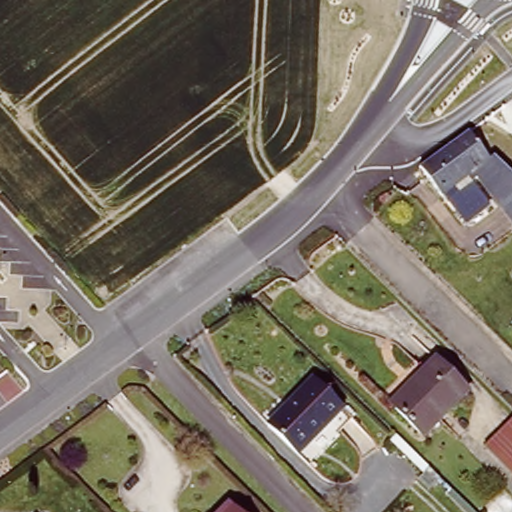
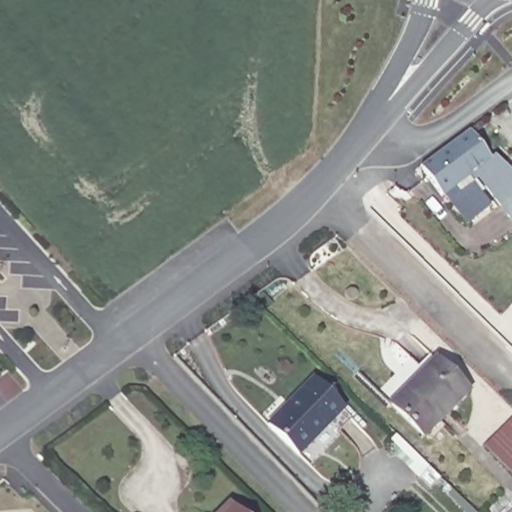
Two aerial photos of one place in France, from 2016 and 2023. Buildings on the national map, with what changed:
unchanged [(489,159),(495,154),(503,162),(512,171),(512,220),(478,178),(472,183),(468,178),(446,195),(423,166),(424,166),(461,136),(468,131),(489,159)]
unchanged [(437,359),(471,392),(425,439),(391,405),(437,359)]
unchanged [(312,381),(342,411),(301,454),(271,424),(312,381)]
unchanged [(512,414),(512,470),(480,441),(512,414)]
unchanged [(228,509),(230,512),(225,512),(228,509)]

